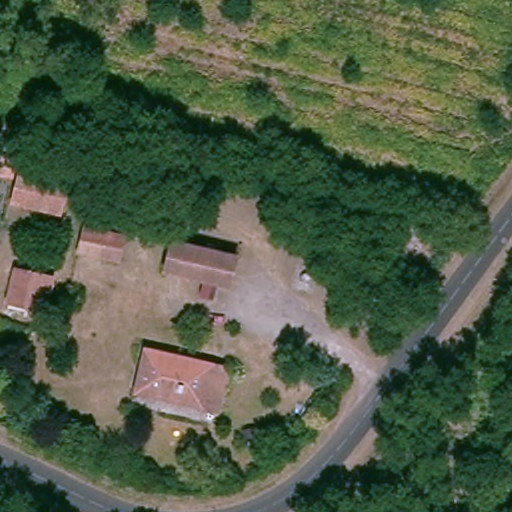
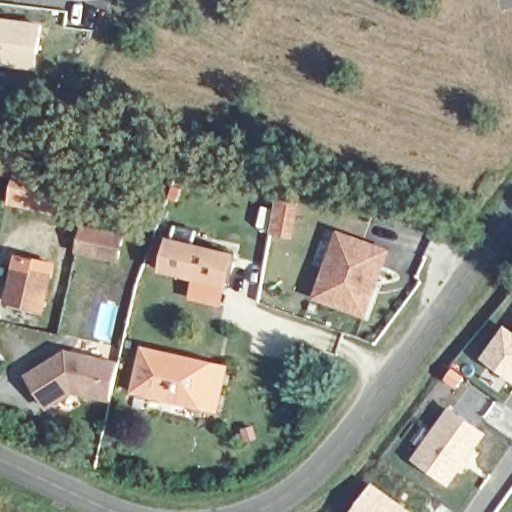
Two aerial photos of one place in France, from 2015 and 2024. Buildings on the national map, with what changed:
new [(0,65),(0,18),(44,22),(39,70),(0,65)]
unchanged [(62,220),(46,217),(19,211),(23,195),(25,181),(68,188),(62,220)]
new [(348,226),(371,235),(396,244),(367,322),(318,305),(342,240),(348,226)]
unchanged [(126,243),(120,268),(79,259),(84,235),(126,243)]
unchanged [(227,291),(161,277),(168,246),(233,260),(227,291)]
unchanged [(9,305),(13,295),(13,293),(17,272),(21,272),(53,280),(48,302),(46,313),(9,305)]
new [(505,323),(512,328),(512,384),(479,358),(505,323)]
unchanged [(219,415),(202,411),(133,396),(143,351),(213,366),(229,370),(219,415)]
new [(66,360),(71,361),(119,372),(110,408),(73,400),(47,416),(28,384),(54,368),(66,360)]
new [(451,405),(488,433),(448,488),(410,460),(451,405)]
new [(415,512),(348,512),(371,480),(415,512)]

